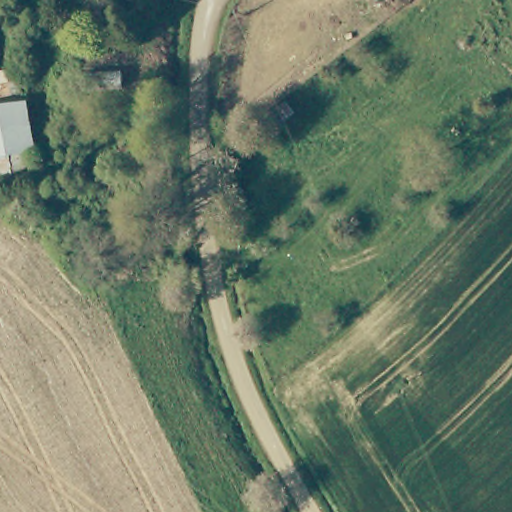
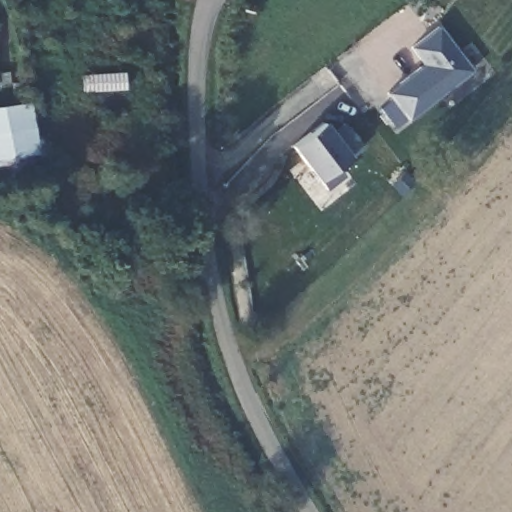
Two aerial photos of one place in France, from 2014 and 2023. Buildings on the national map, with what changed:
new [(388,91),(424,64),(412,46),(440,26),(475,70),(411,120),(388,91)]
unchanged [(66,87),(68,68),(109,72),(107,91),(66,87)]
unchanged [(33,102),(40,153),(31,155),(33,177),(0,181),(0,106),(33,102)]
new [(294,146),(325,123),(333,134),(346,125),(363,148),(339,167),(345,176),(327,189),(294,146)]

